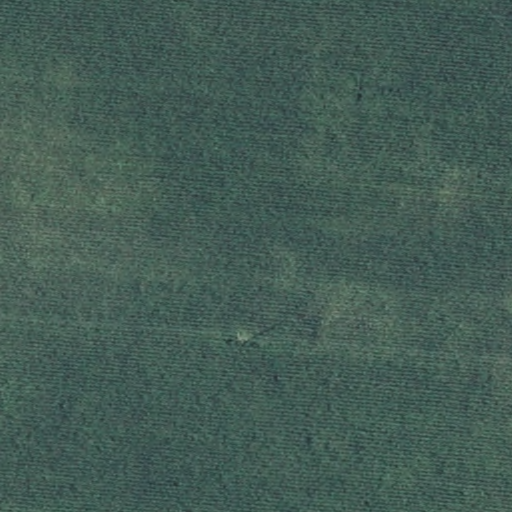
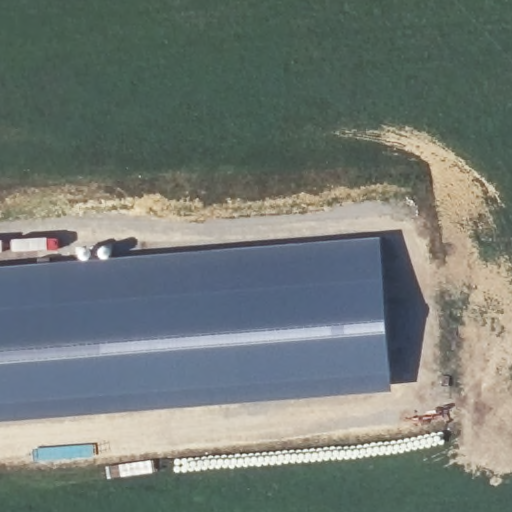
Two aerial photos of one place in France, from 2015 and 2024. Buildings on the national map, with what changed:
new [(381,235),(392,389),(0,420),(0,264),(381,235)]

